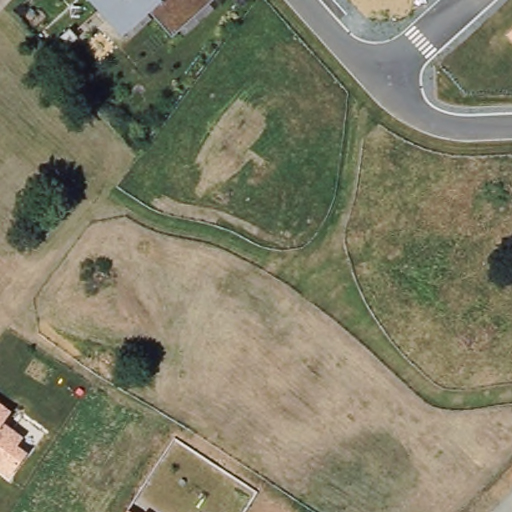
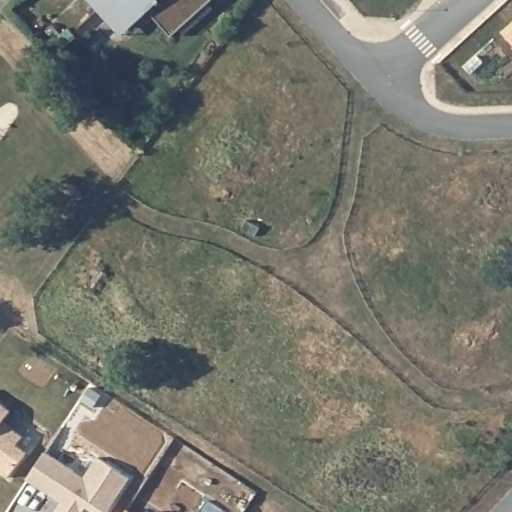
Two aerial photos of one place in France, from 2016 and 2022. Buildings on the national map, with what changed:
unchanged [(86,0),(213,0),(169,39),(146,14),(143,17),(128,31),(120,38),(110,26),(86,0)]
unchanged [(505,34),(512,28),(512,42),(505,34)]
unchanged [(22,437),(16,445),(26,452),(6,478),(0,474),(0,403),(9,409),(1,423),(22,437)]
new [(130,479),(107,512),(96,512),(86,507),(84,512),(58,512),(56,510),(61,503),(27,483),(46,451),(84,478),(97,458),(130,479)]
unchanged [(131,512),(124,512),(126,509),(131,512)]

